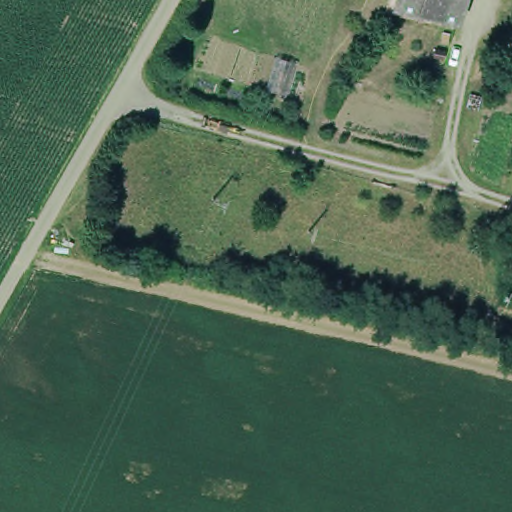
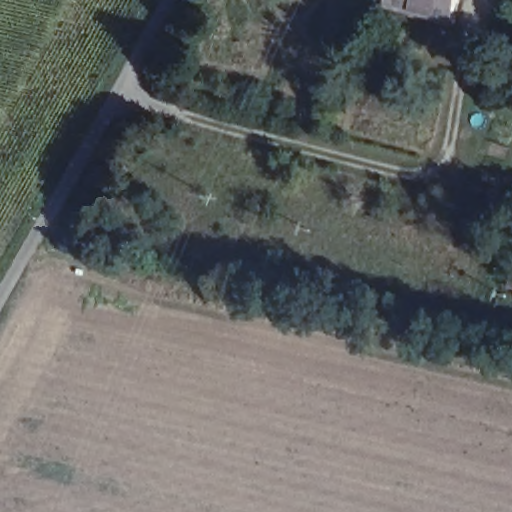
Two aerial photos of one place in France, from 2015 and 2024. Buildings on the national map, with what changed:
unchanged [(450,15),(387,1),(388,0),(453,0),(450,15)]

